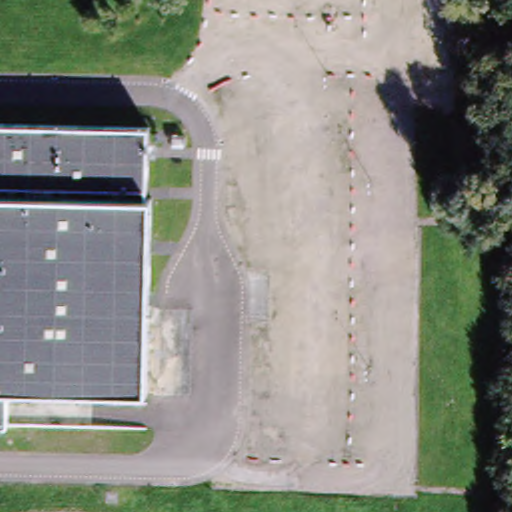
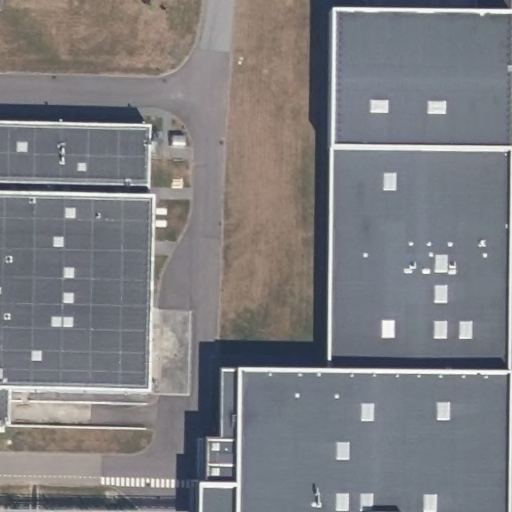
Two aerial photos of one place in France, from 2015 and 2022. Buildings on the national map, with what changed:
new [(204,442),(218,442),(217,370),(235,370),(327,371),(328,148),(328,11),(512,14),(512,73),(510,151),(508,373),(507,512),(197,512),(197,487),(205,487),(204,442)]
unchanged [(142,129),(140,199),(145,199),(137,394),(46,390),(24,390),(0,389),(0,123),(142,129)]

